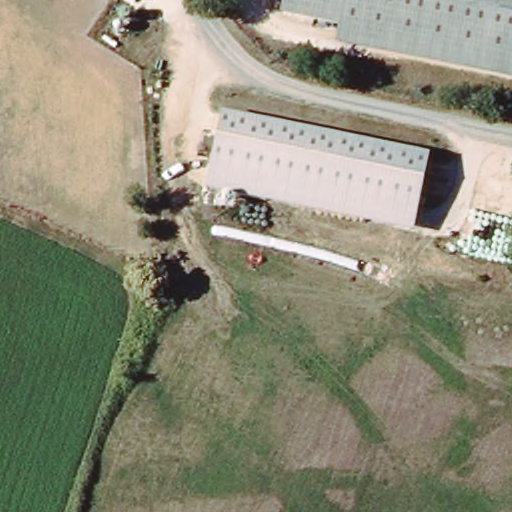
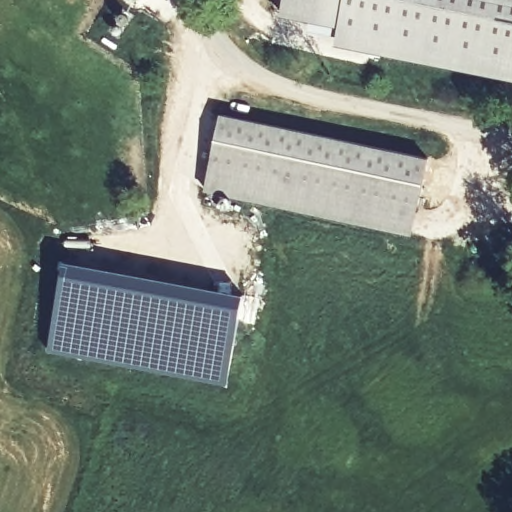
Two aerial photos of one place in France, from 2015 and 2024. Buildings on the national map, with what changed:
unchanged [(144,6),(135,0),(148,0),(144,6)]
unchanged [(290,10),(293,0),(353,0),(346,23),(290,10)]
unchanged [(346,23),(353,0),(512,0),(512,79),(344,39),(346,23)]
unchanged [(221,112),(429,155),(413,232),(206,190),(221,112)]
new [(63,258),(247,293),(228,386),(120,364),(48,352),(63,258)]

